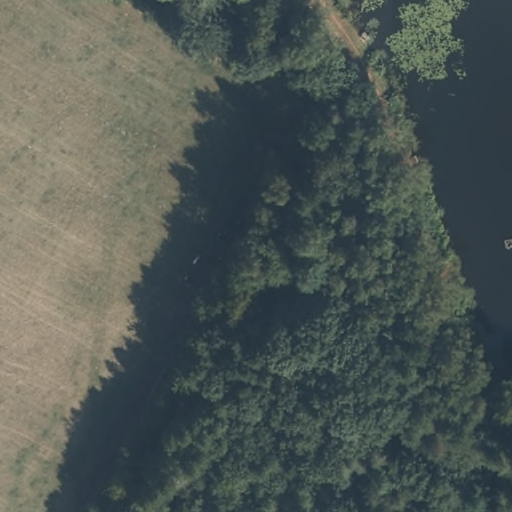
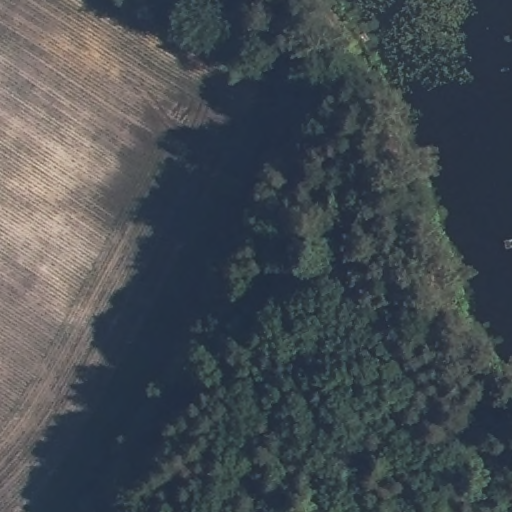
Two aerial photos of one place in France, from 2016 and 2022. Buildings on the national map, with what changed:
[]

